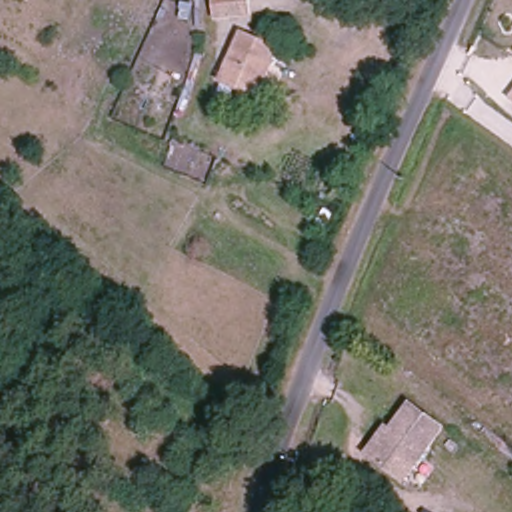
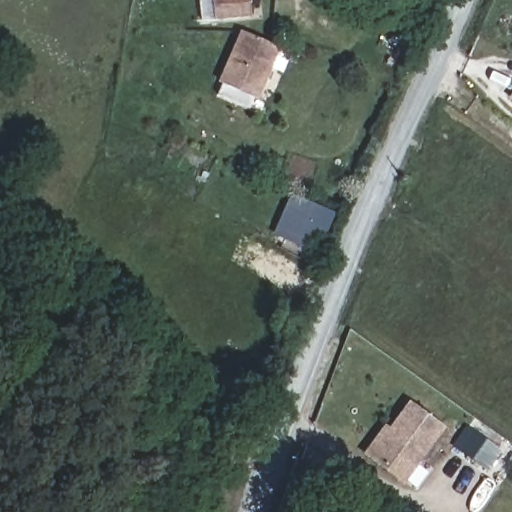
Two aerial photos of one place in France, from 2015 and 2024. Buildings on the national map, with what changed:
unchanged [(220,19),(219,0),(248,0),(249,18),(220,19)]
unchanged [(276,46),(259,94),(224,80),(243,31),(276,46)]
unchanged [(512,96),(512,100),(511,98),(512,96)]
new [(323,250),(274,233),(291,194),(337,212),(323,250)]
unchanged [(442,429),(404,481),(370,456),(362,449),(380,423),(389,430),(408,404),(442,429)]

